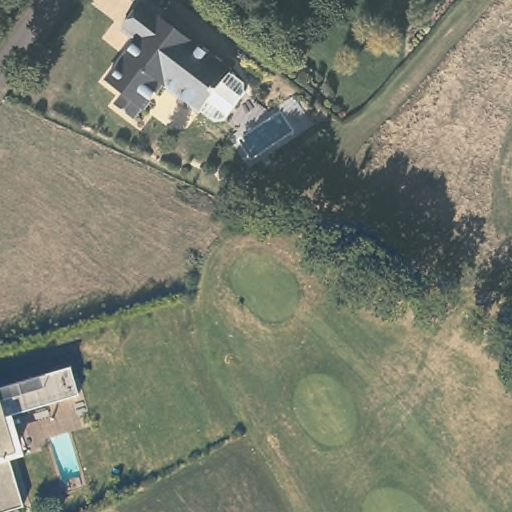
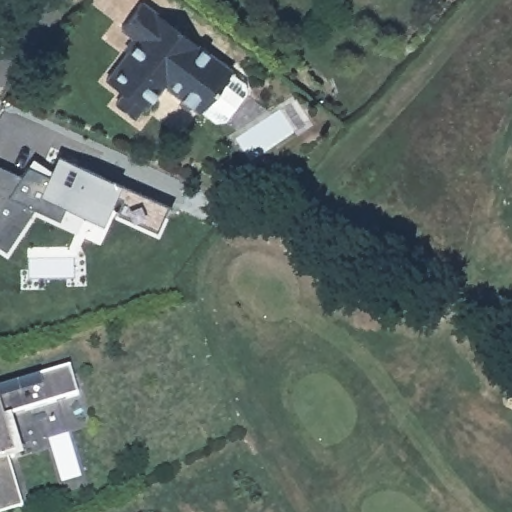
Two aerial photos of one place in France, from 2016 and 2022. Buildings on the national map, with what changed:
unchanged [(234,68),(248,79),(249,88),(228,115),(219,116),(205,105),(204,107),(166,79),(147,104),(146,102),(137,113),(120,100),(128,89),(110,75),(141,35),(125,23),(143,0),(149,0),(235,66),(234,68)]
new [(33,157),(51,167),(56,155),(119,182),(167,205),(163,212),(167,215),(157,236),(114,216),(122,199),(115,194),(99,224),(82,215),(75,232),(35,214),(7,255),(0,251),(0,165),(22,175),(33,157)]
unchanged [(13,416),(23,456),(8,461),(24,506),(7,512),(0,512),(0,388),(71,368),(79,395),(13,416)]

